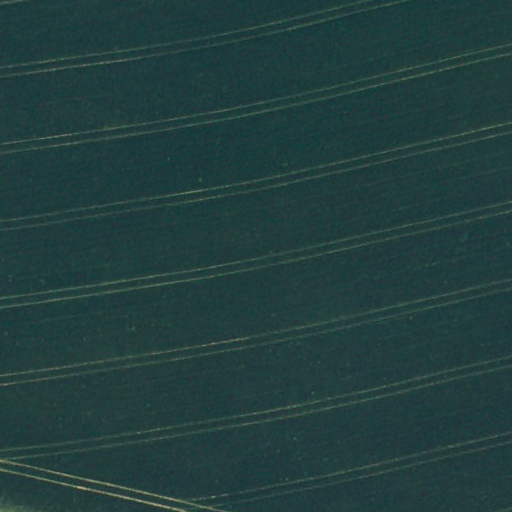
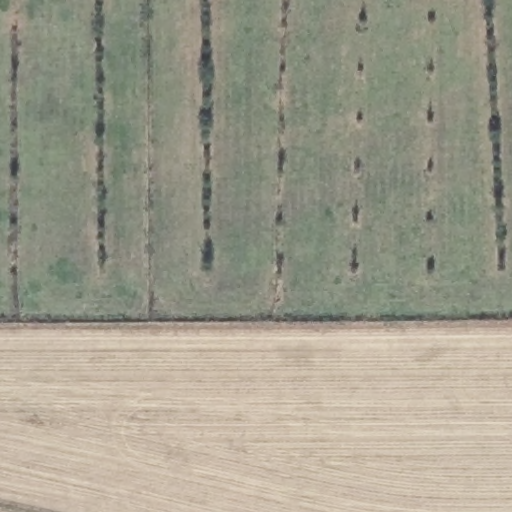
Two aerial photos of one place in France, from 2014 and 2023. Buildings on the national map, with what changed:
[]

